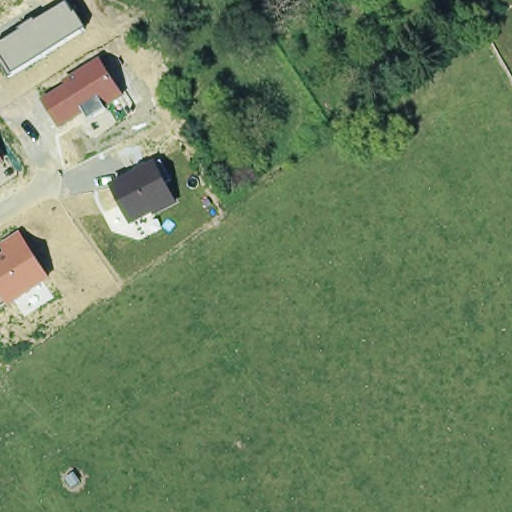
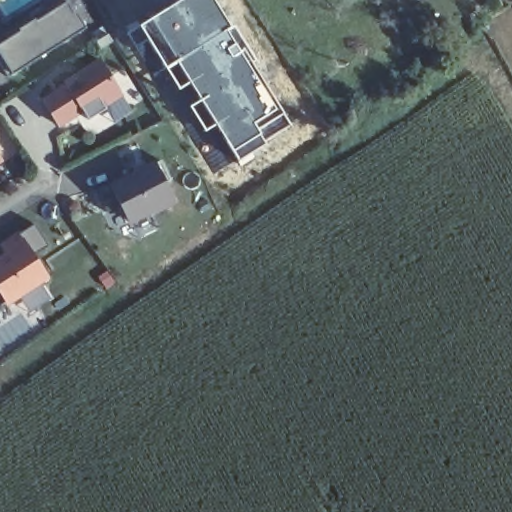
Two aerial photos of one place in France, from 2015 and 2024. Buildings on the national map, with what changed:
new [(174,0),(214,0),(231,25),(175,61),(189,84),(178,90),(136,25),(174,0)]
unchanged [(9,77),(0,64),(0,44),(21,31),(19,27),(34,19),(35,21),(67,2),(73,14),(76,12),(86,27),(9,77)]
new [(231,25),(234,24),(254,58),(251,61),(292,124),(239,162),(215,125),(204,131),(188,105),(198,99),(189,84),(175,61),(231,25)]
unchanged [(123,96),(107,109),(88,120),(83,113),(59,128),(42,100),(67,84),(65,80),(100,57),(123,96)]
unchanged [(4,161),(0,163),(0,156),(4,161)]
unchanged [(177,204),(129,225),(110,183),(133,171),(132,169),(158,159),(177,204)]
unchanged [(50,279),(8,305),(0,292),(0,254),(3,252),(0,247),(0,242),(19,230),(50,279)]

